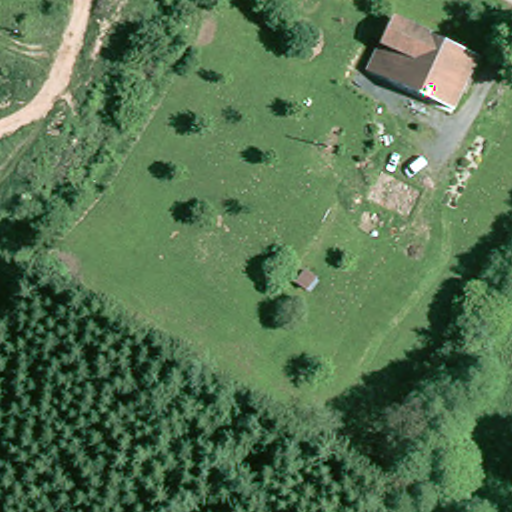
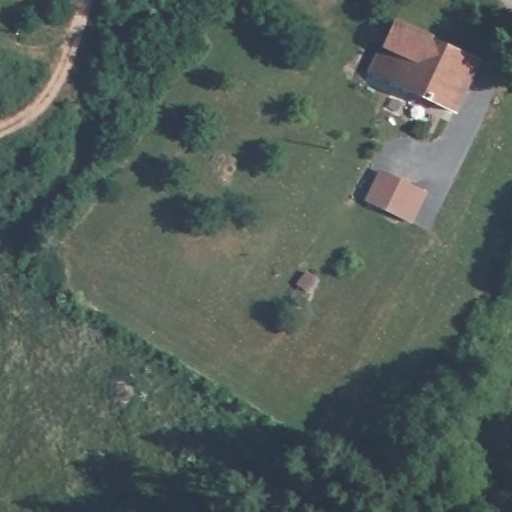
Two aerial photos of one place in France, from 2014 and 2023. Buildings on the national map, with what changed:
unchanged [(423,17),(442,26),(433,46),(477,67),(456,115),(372,80),(398,27),(414,34),(423,17)]
new [(429,191),(412,222),(365,198),(379,168),(429,191)]
demolished [(397,218),(366,205),(380,171),(414,185),(397,218)]

